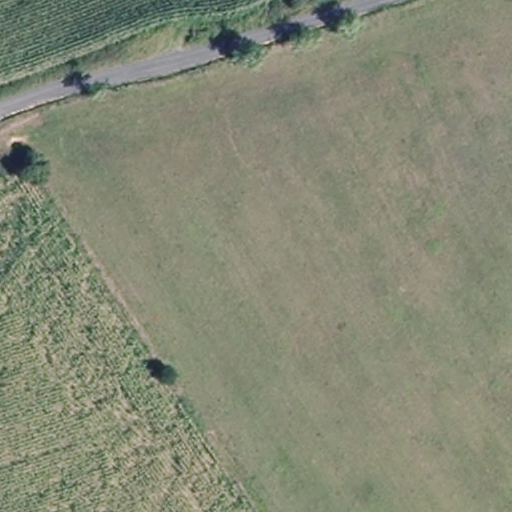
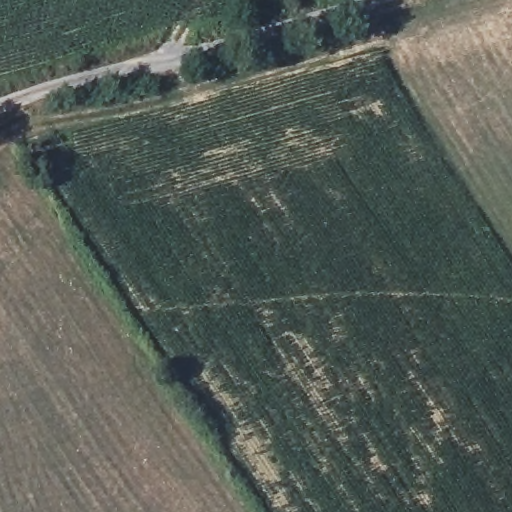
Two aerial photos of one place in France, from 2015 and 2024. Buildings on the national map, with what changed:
[]

